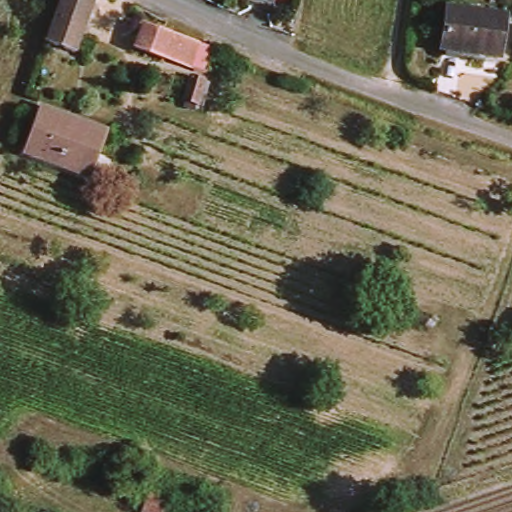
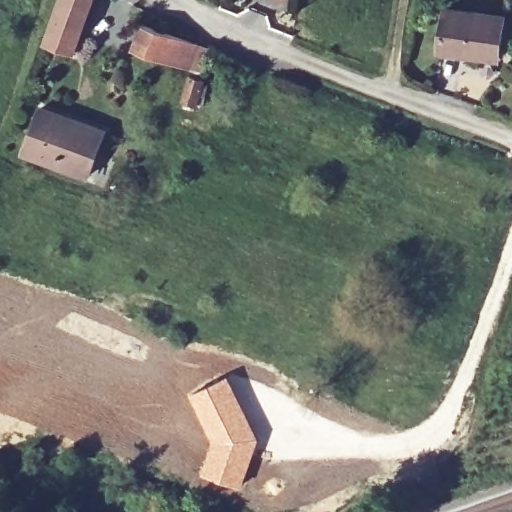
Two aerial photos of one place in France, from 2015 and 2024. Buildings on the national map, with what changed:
unchanged [(45,40),(59,0),(92,0),(75,50),(45,40)]
unchanged [(452,6),(510,14),(504,56),(446,47),(452,6)]
unchanged [(187,67),(134,48),(143,25),(195,44),(187,67)]
unchanged [(193,103),(183,97),(190,77),(202,81),(193,103)]
unchanged [(42,111),(103,133),(89,171),(28,149),(42,111)]
new [(228,374),(260,438),(242,487),(202,473),(212,440),(189,394),(228,374)]
unchanged [(163,491),(157,502),(126,489),(131,478),(163,491)]

